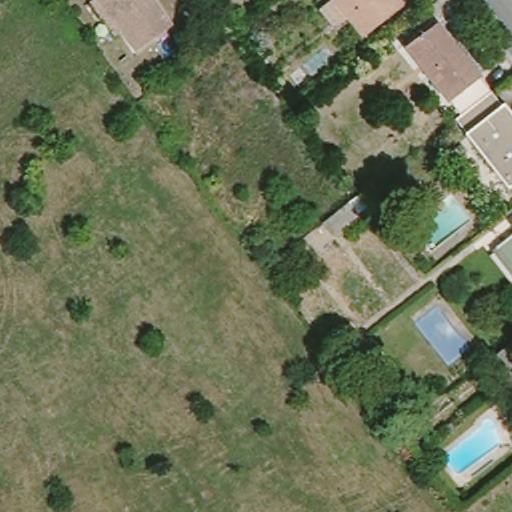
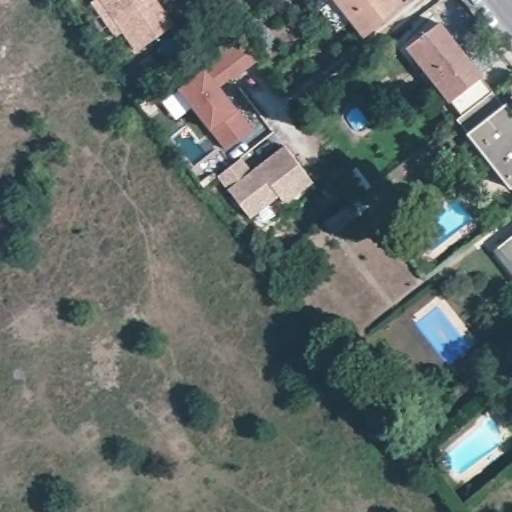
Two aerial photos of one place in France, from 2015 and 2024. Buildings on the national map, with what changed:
unchanged [(106,0),(159,0),(179,30),(143,55),(106,0)]
unchanged [(365,34),(352,20),(337,32),(321,10),(333,0),(400,0),(403,4),(365,34)]
unchanged [(409,46),(440,22),(493,91),(462,115),(409,46)]
new [(164,103),(180,91),(206,67),(240,41),(258,62),(222,87),(240,108),(253,127),(224,147),(211,130),(192,107),(176,119),(164,103)]
demolished [(336,57),(313,75),(304,63),(327,45),(336,57)]
unchanged [(512,115),(512,186),(510,187),(457,119),(462,115),(493,91),(512,115)]
new [(314,181),(286,202),(282,195),(252,217),(218,177),(242,157),(253,170),(285,145),(314,181)]
unchanged [(350,203),(362,194),(370,204),(358,214),(350,203)]
unchanged [(512,232),(512,270),(495,247),(512,232)]
new [(512,342),(512,387),(490,357),(512,342)]
demolished [(512,385),(495,363),(512,350),(512,385)]

